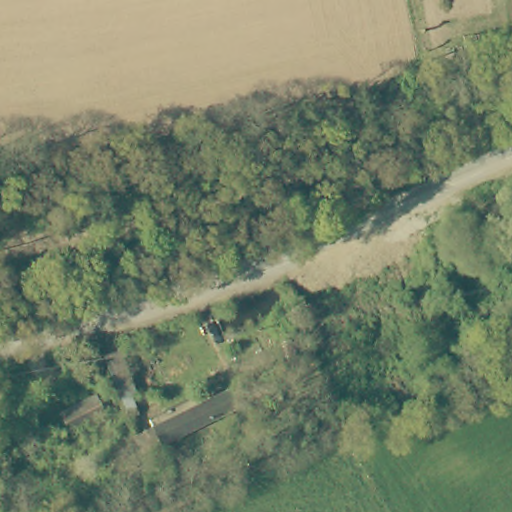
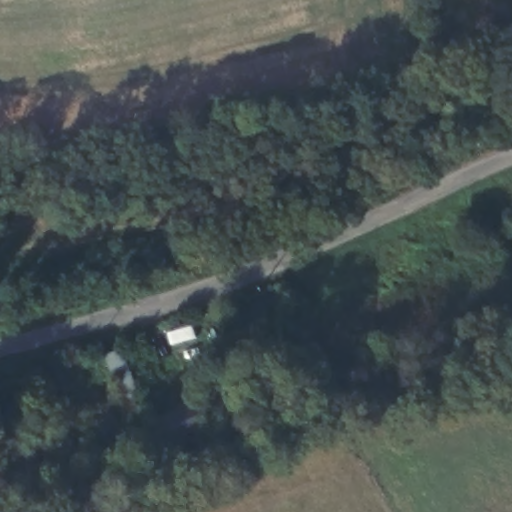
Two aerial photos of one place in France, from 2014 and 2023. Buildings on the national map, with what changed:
unchanged [(114,366),(126,361),(142,405),(131,410),(114,366)]
unchanged [(142,437),(236,388),(246,408),(166,446),(167,449),(150,458),(142,437)]
unchanged [(62,420),(104,397),(114,415),(73,437),(62,420)]

